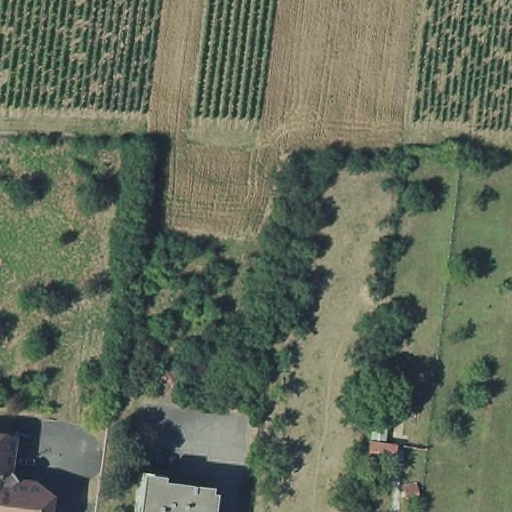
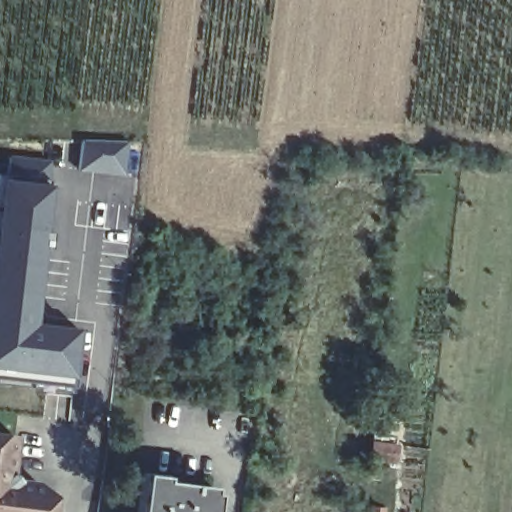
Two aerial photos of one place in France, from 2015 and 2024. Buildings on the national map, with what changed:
new [(48,159),(31,324),(78,329),(75,383),(0,375),(0,174),(7,175),(9,156),(48,159)]
unchanged [(16,436),(12,472),(19,481),(38,483),(53,496),(51,512),(0,512),(0,434),(16,436)]
unchanged [(148,475),(211,485),(208,512),(143,512),(148,475)]

